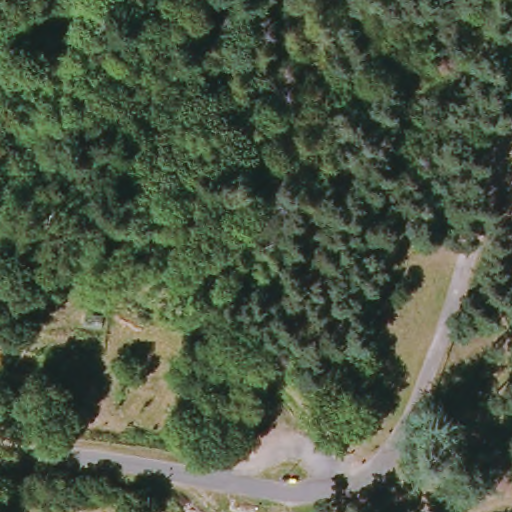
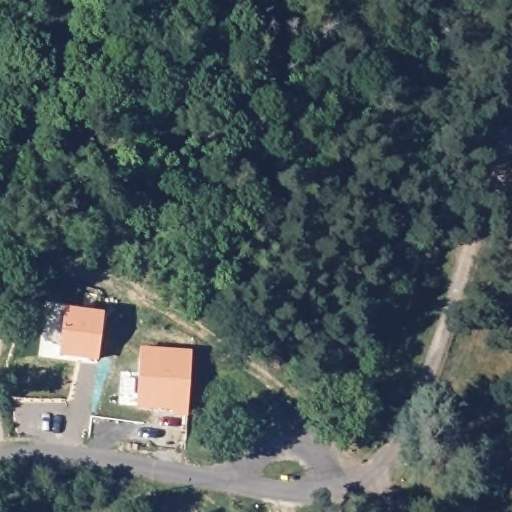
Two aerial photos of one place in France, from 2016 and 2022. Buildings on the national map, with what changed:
new [(105,311),(99,357),(60,353),(64,306),(105,311)]
new [(188,414),(171,414),(172,408),(136,406),(140,349),(192,352),(188,414)]

